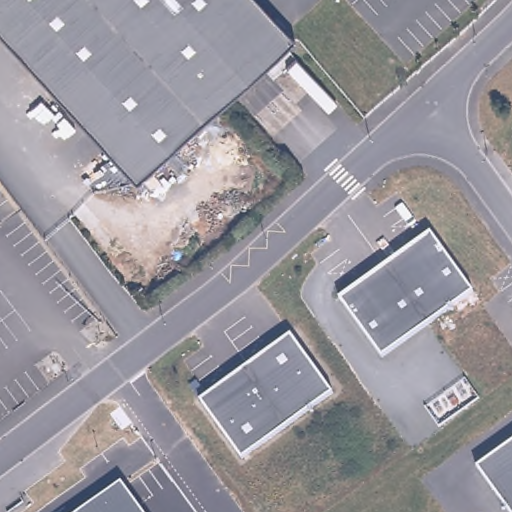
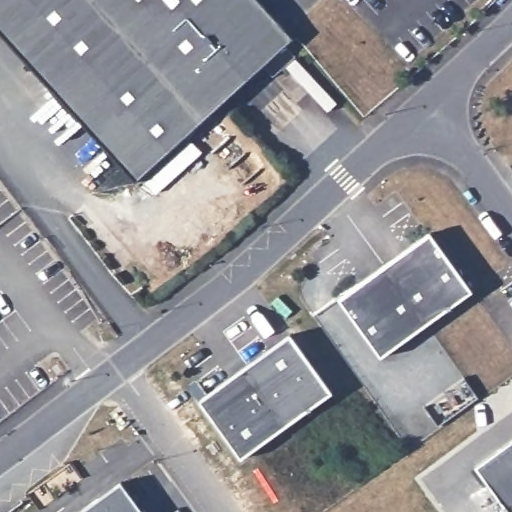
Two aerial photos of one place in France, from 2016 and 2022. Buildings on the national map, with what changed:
unchanged [(139,179),(0,27),(0,0),(266,0),(297,34),(139,179)]
unchanged [(380,359),(337,301),(431,234),(473,292),(380,359)]
unchanged [(239,460),(197,402),(289,336),(331,394),(239,460)]
unchanged [(512,440),(512,512),(506,512),(473,468),(512,440)]
unchanged [(143,512),(80,512),(121,482),(143,512)]

